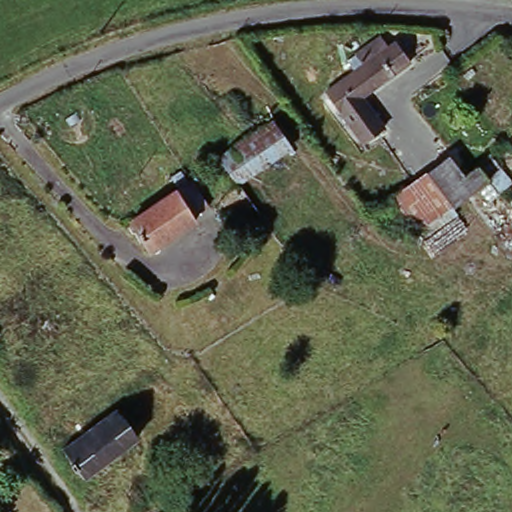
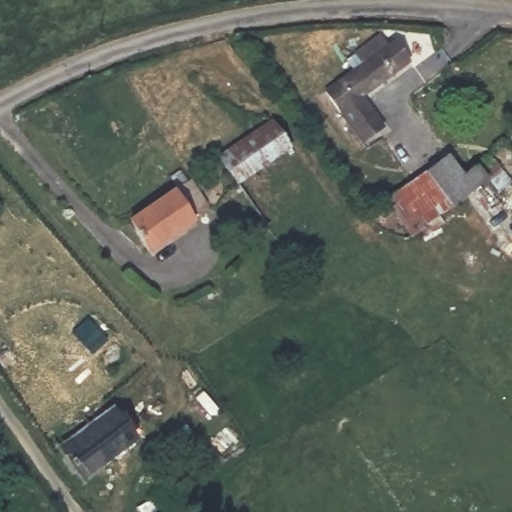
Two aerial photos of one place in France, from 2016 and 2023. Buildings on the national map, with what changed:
unchanged [(369,68),(362,57),(392,39),(403,41),(407,46),(401,49),(415,71),(366,101),(386,132),(362,146),(329,92),(369,68)]
unchanged [(236,189),(218,165),(271,130),(288,154),(236,189)]
unchanged [(486,159),(508,186),(497,196),(474,167),(486,159)]
unchanged [(440,203),(421,180),(442,163),(460,181),(469,173),(479,186),(446,210),(440,203)]
unchanged [(382,225),(374,216),(421,180),(440,203),(446,210),(411,237),(406,231),(401,235),(387,219),(382,225)]
unchanged [(195,189),(212,212),(196,223),(199,228),(152,259),(131,231),(195,189)]
unchanged [(114,416),(138,444),(89,481),(64,451),(114,416)]

